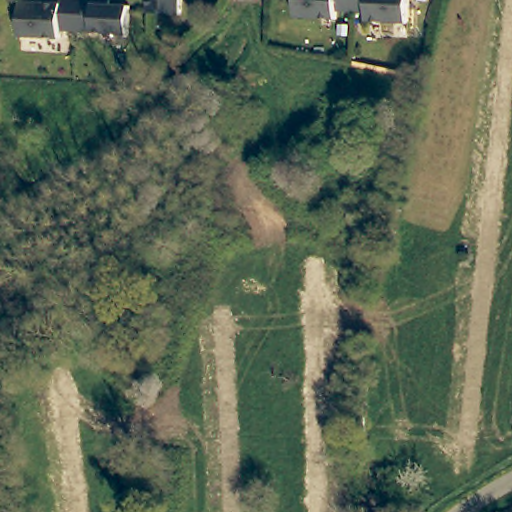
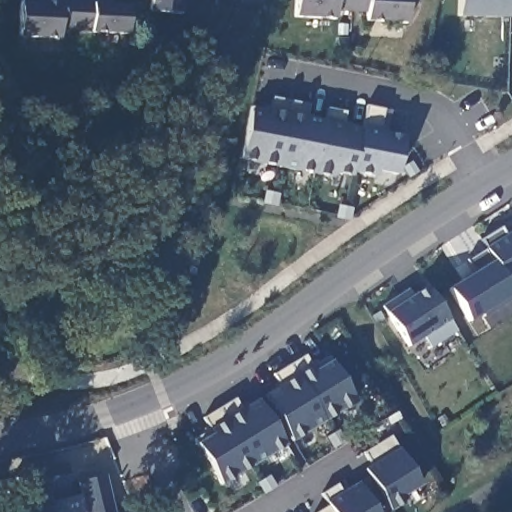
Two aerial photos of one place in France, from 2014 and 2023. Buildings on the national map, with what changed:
unchanged [(58,31),(57,39),(15,37),(17,2),(37,2),(38,0),(73,0),(71,32),(58,31)]
unchanged [(125,5),(123,34),(71,32),(73,0),(104,0),(104,4),(125,5)]
unchanged [(145,12),(146,0),(177,0),(176,14),(145,12)]
unchanged [(332,12),(331,19),(290,17),(291,0),(348,0),(347,13),(332,12)]
unchanged [(362,21),(362,15),(347,13),(348,0),(403,0),(401,22),(362,21)]
new [(458,17),(459,0),(510,0),(509,18),(458,17)]
new [(267,114),(271,97),(310,106),(308,117),(324,122),(327,110),(346,114),(344,125),(359,129),(367,107),(384,111),(379,132),(404,137),(398,176),(377,172),(376,176),(353,172),(351,179),(334,175),(334,179),(239,159),(249,111),(267,114)]
new [(506,283),(512,292),(512,300),(482,318),(480,315),(467,322),(446,287),(473,271),(465,261),(484,250),(478,241),(501,227),(505,234),(512,230),(512,280),(506,283)]
new [(381,306),(407,288),(411,294),(425,285),(448,320),(456,333),(430,349),(423,338),(407,347),(385,313),(381,306)]
new [(358,403),(294,441),(265,396),(282,385),(274,374),(305,356),(313,368),(331,360),(358,403)]
new [(283,447),(221,485),(195,442),(210,431),(201,418),(234,397),(242,410),(254,400),(283,447)]
new [(396,412),(399,418),(388,425),(385,418),(396,412)]
new [(339,433),(345,443),(340,447),(334,451),(328,440),(333,437),(339,433)]
new [(367,463),(363,452),(389,437),(396,449),(419,489),(385,507),(362,467),(367,463)]
new [(83,511),(78,512),(20,512),(12,477),(65,462),(69,483),(46,487),(49,501),(79,492),(75,481),(103,473),(112,512),(84,512),(83,511)]
new [(268,477),(275,487),(269,491),(263,494),(257,483),(263,480),(268,477)]
new [(356,481),(372,512),(331,512),(324,499),(356,481)]

